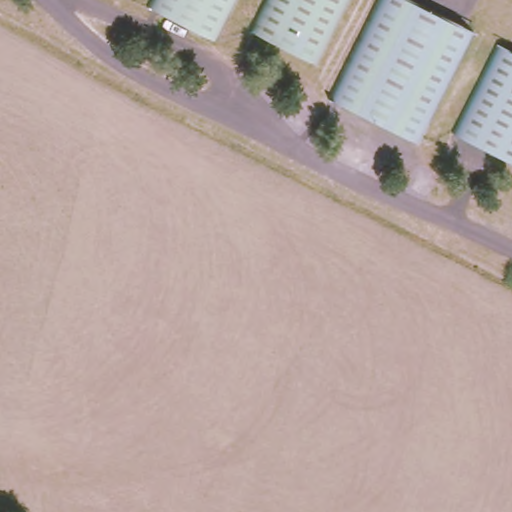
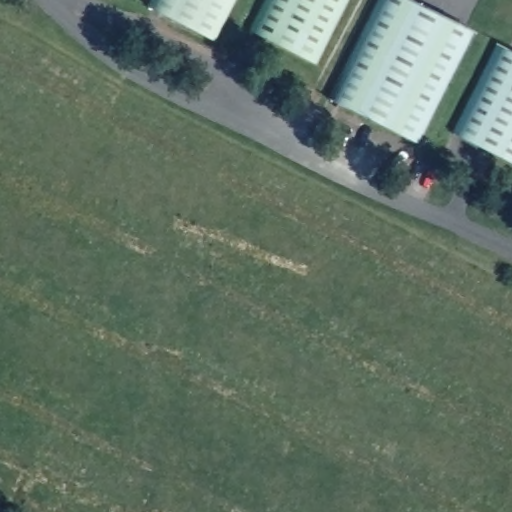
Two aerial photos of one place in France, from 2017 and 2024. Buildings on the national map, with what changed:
unchanged [(147,6),(150,0),(235,0),(214,40),(147,6)]
unchanged [(248,29),(262,0),(348,0),(316,64),(248,29)]
unchanged [(418,143),(328,96),(376,0),(410,0),(474,32),(418,143)]
unchanged [(512,162),(452,131),(496,43),(512,51),(512,162)]

